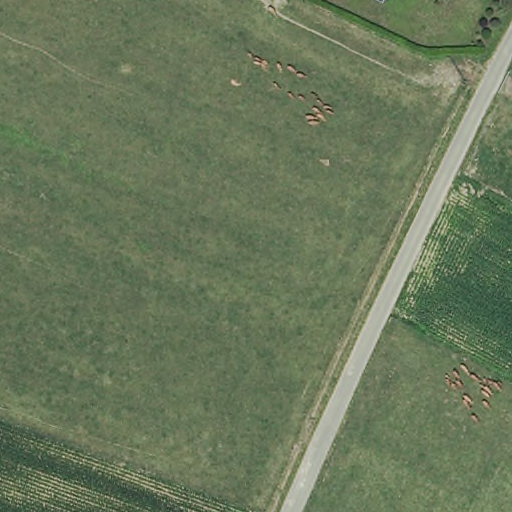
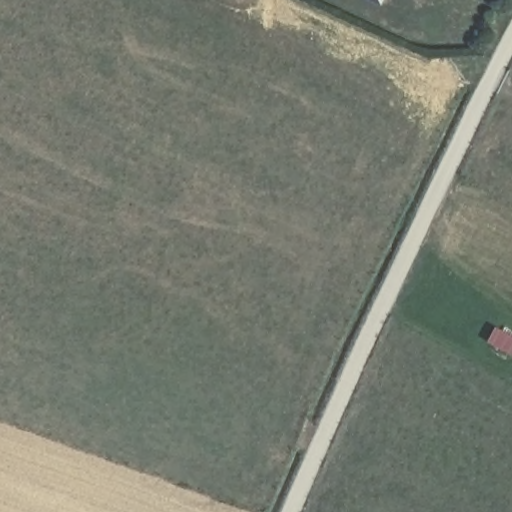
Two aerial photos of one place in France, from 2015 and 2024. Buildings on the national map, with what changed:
unchanged [(387,3),(378,0),(388,0),(387,3)]

